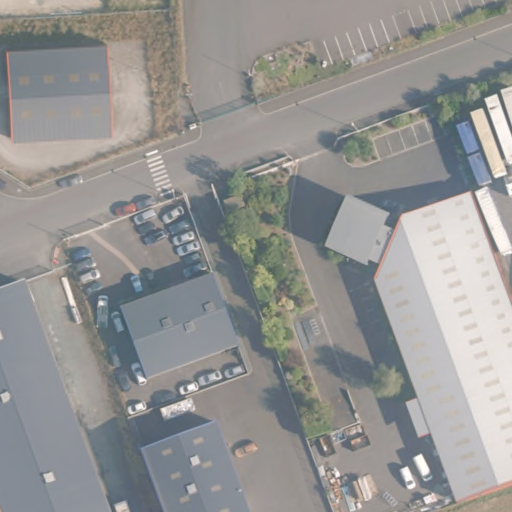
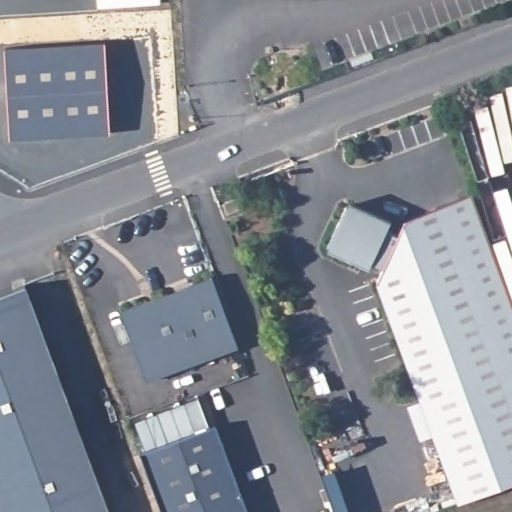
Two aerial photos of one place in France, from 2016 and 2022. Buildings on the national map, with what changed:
unchanged [(8,48),(108,42),(114,131),(13,137),(8,48)]
unchanged [(245,194),(251,207),(234,214),(229,200),(245,194)]
unchanged [(374,280),(379,268),(368,263),(365,269),(324,250),(344,208),(382,227),(383,231),(393,235),(401,220),(468,196),(512,313),(512,482),(456,503),(374,280)]
unchanged [(214,275),(240,346),(146,380),(120,309),(214,275)]
unchanged [(110,512),(0,512),(0,294),(26,284),(110,512)]
unchanged [(215,425),(248,512),(163,512),(142,453),(215,425)]

